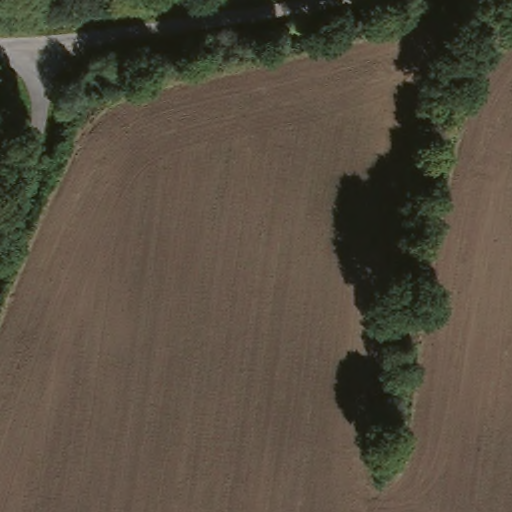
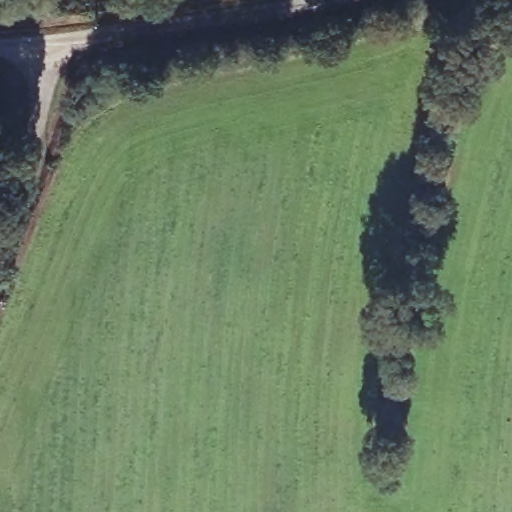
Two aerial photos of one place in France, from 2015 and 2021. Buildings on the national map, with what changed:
[]

